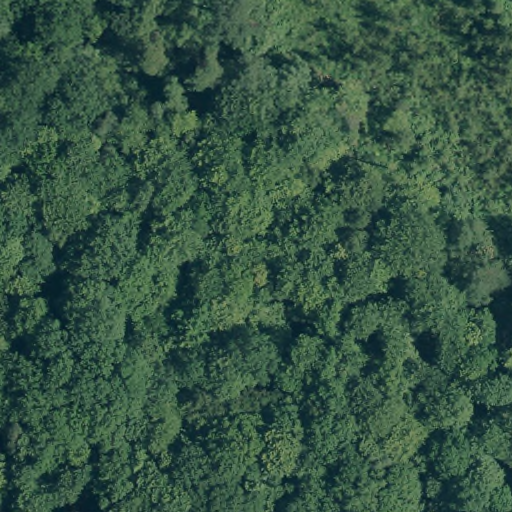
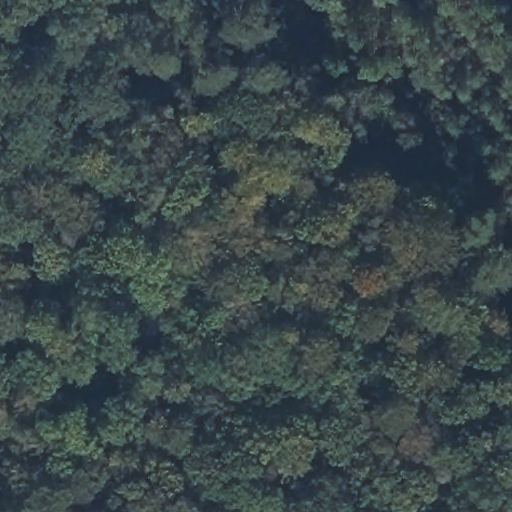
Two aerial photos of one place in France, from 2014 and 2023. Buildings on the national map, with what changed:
[]

